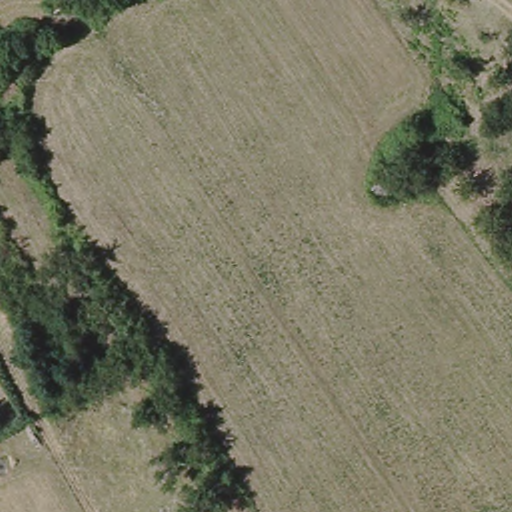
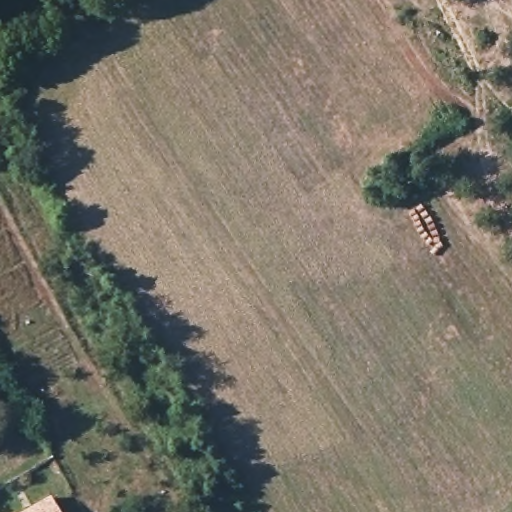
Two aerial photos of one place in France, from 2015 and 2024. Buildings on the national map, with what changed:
unchanged [(15,18),(5,0),(26,0),(30,6),(15,18)]
unchanged [(9,69),(25,96),(7,106),(0,94),(0,74),(9,69)]
unchanged [(387,178),(398,195),(387,204),(375,187),(387,178)]
new [(59,512),(22,512),(51,497),(59,512)]

